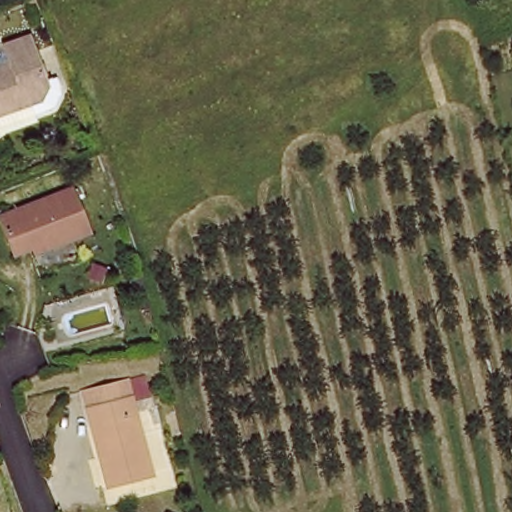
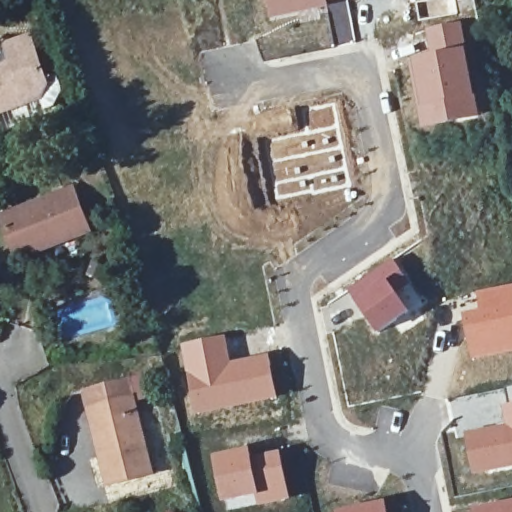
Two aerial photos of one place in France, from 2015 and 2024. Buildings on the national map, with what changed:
new [(327,7),(267,20),(263,0),(331,0),(327,1),(327,7)]
new [(331,0),(348,0),(355,42),(333,47),(327,7),(327,1),(331,0)]
new [(418,21),(414,0),(457,0),(460,15),(418,21)]
new [(461,19),(466,46),(428,56),(423,27),(461,19)]
unchanged [(0,113),(0,65),(11,61),(5,42),(30,34),(46,78),(48,85),(41,98),(35,100),(0,113)]
new [(428,56),(466,46),(480,119),(421,131),(410,60),(428,56)]
new [(273,201),(265,137),(306,129),(305,106),(334,100),(339,124),(350,187),(273,201)]
unchanged [(86,234),(50,248),(47,243),(12,256),(0,223),(0,218),(70,191),(86,234)]
new [(392,257),(412,284),(400,295),(410,312),(378,334),(346,291),(392,257)]
new [(473,290),(512,282),(512,352),(470,361),(462,313),(477,310),(473,290)]
new [(225,334),(232,362),(268,352),(278,398),(193,416),(178,344),(225,334)]
new [(498,403),(509,402),(506,387),(512,386),(512,468),(470,476),(461,429),(502,421),(498,403)]
unchanged [(130,406),(150,482),(112,493),(105,466),(98,467),(86,417),(130,406)]
new [(251,448),(253,456),(259,497),(256,497),(223,503),(213,457),(251,448)]
new [(280,450),(290,499),(258,505),(256,497),(259,497),(253,456),(280,450)]
new [(386,501),(389,512),(334,512),(386,501)]
new [(512,512),(473,512),(473,509),(512,501),(512,512)]

